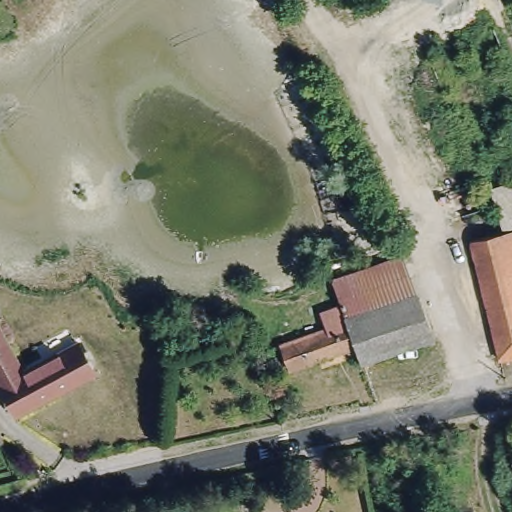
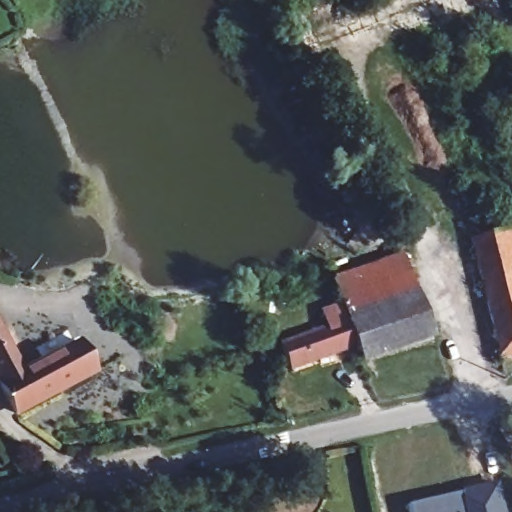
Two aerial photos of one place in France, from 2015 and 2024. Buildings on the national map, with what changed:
demolished [(512,180),(512,224),(503,227),(492,185),(512,180)]
unchanged [(499,359),(492,335),(487,335),(486,329),(490,328),(465,240),(512,227),(512,357),(499,359)]
unchanged [(331,273),(404,251),(431,336),(370,356),(359,360),(354,345),(347,322),(337,292),(331,273)]
unchanged [(287,368),(279,345),(347,322),(354,345),(287,368)]
unchanged [(0,329),(22,370),(52,355),(78,342),(94,370),(69,383),(12,412),(0,388),(0,329)]
new [(504,512),(409,512),(407,505),(497,484),(504,512)]

